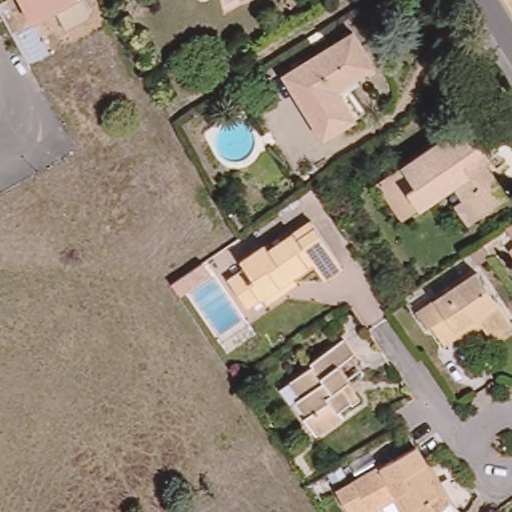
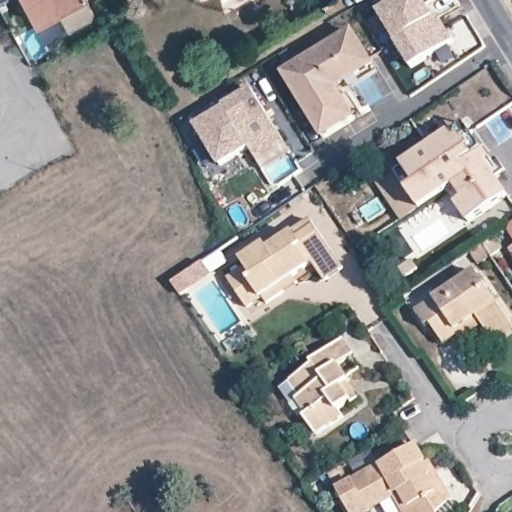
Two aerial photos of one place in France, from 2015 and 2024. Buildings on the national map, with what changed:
unchanged [(95,16),(66,30),(57,12),(35,25),(21,0),(87,0),(95,16)]
new [(396,0),(426,0),(435,16),(397,40),(379,11),(396,0)]
new [(397,40),(435,16),(439,14),(455,39),(412,66),(395,41),(397,40)]
unchanged [(316,112),(306,97),(289,70),(295,66),(355,28),(377,62),(339,86),(357,113),(334,128),(328,132),(316,112)]
new [(262,167),(255,154),(249,145),(220,162),(197,123),(225,105),(224,103),(253,86),(284,136),(292,149),(262,167)]
unchanged [(417,181),(425,176),(412,156),(460,124),(465,132),(478,123),(490,142),(497,152),(494,154),(512,182),(512,186),(475,210),(464,193),(456,181),(429,199),(417,181)]
unchanged [(386,172),(412,156),(425,176),(417,181),(429,199),(411,210),(386,172)]
unchanged [(287,294),(271,304),(267,297),(251,308),(232,279),(250,267),(246,261),(271,245),(273,249),(315,220),(347,268),(329,280),(319,264),(298,277),(302,284),(287,294)]
unchanged [(491,249),(503,241),(510,252),(499,260),(491,249)]
unchanged [(495,331),(487,321),(467,335),(462,328),(447,338),(435,319),(430,322),(420,308),(482,267),(512,312),(512,330),(500,339),(495,331)]
unchanged [(350,401),(338,410),(343,418),(316,436),(304,417),(306,416),(295,401),(300,398),(289,382),(312,366),(310,362),(340,341),(349,356),(338,364),(349,379),(347,381),(359,398),(351,403),(350,401)]
unchanged [(455,497),(440,509),(443,512),(410,512),(399,492),(359,512),(356,512),(342,486),(424,440),(433,458),(440,469),(455,497)]

